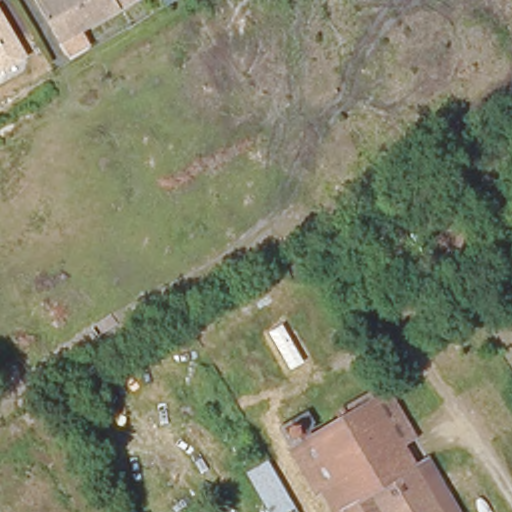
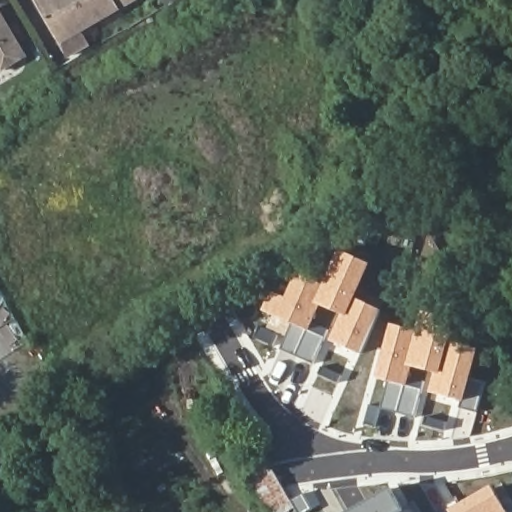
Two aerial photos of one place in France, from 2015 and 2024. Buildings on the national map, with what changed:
unchanged [(37,0),(137,0),(63,43),(37,0)]
unchanged [(162,0),(172,0),(165,4),(162,0)]
unchanged [(25,47),(21,60),(8,68),(0,67),(0,9),(1,8),(25,47)]
new [(272,292),(287,298),(298,273),(324,285),(339,249),(372,264),(356,298),(381,310),(362,354),(331,340),(343,315),(321,306),(311,330),(325,337),(314,363),(282,349),(287,336),(294,324),(264,311),(272,292)]
new [(392,324),(417,331),(422,312),(456,321),(451,341),(479,349),(472,376),(487,382),(478,412),(461,407),(463,400),(430,393),(436,373),(414,368),(409,385),(423,389),(416,417),(384,408),(378,427),(366,424),(371,405),(382,407),(390,382),(376,377),(392,324)]
demolished [(325,496),(318,499),(293,454),(348,419),(344,413),(368,397),(373,406),(390,396),(456,512),(334,512),(325,496)]
demolished [(308,420),(314,431),(306,436),(309,441),(291,451),(283,435),(308,420)]
unchanged [(266,458),(293,511),(291,512),(265,512),(244,469),(266,458)]
new [(491,486),(506,512),(450,512),(449,510),(491,486)]
new [(391,489),(403,511),(410,507),(413,512),(351,512),(391,489)]

